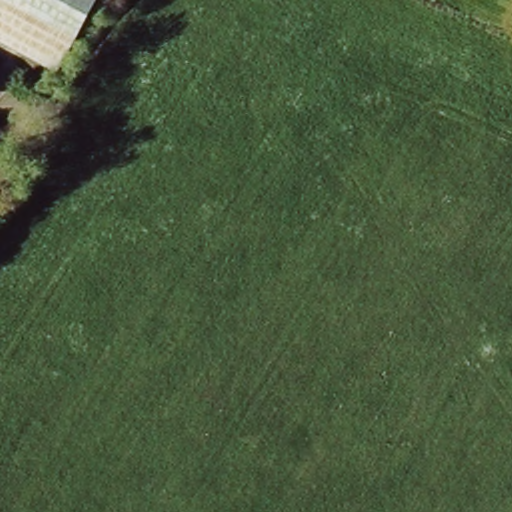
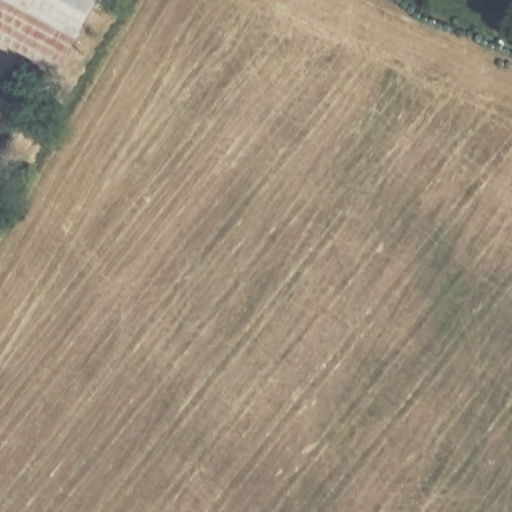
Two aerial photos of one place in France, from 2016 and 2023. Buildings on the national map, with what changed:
unchanged [(57,79),(0,50),(0,0),(101,0),(57,79)]

